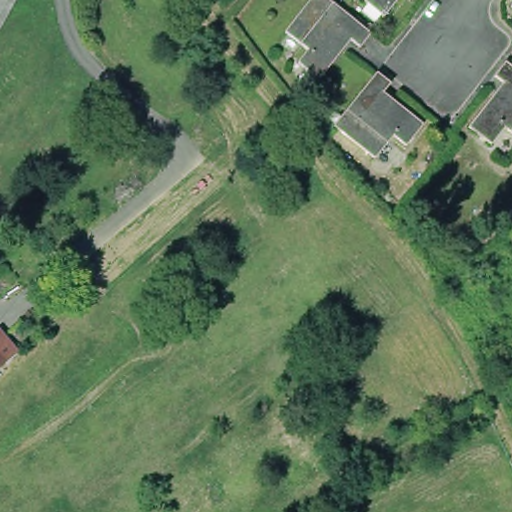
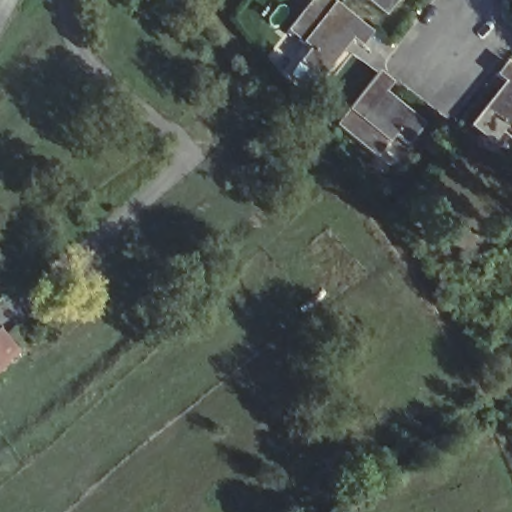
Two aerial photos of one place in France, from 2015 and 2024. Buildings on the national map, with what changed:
unchanged [(14,0),(0,26),(0,0),(14,0)]
unchanged [(372,40),(362,34),(330,74),(308,56),(317,44),(295,27),(317,0),(347,0),(382,28),(372,40)]
unchanged [(369,0),(402,0),(390,16),(369,0)]
unchanged [(497,140),(475,122),(511,78),(501,70),(512,56),(512,124),(511,123),(497,140)]
unchanged [(397,83),(396,83),(389,93),(429,124),(412,146),(399,135),(381,158),(340,125),(383,73),(397,83)]
unchanged [(0,366),(0,351),(8,360),(0,366)]

